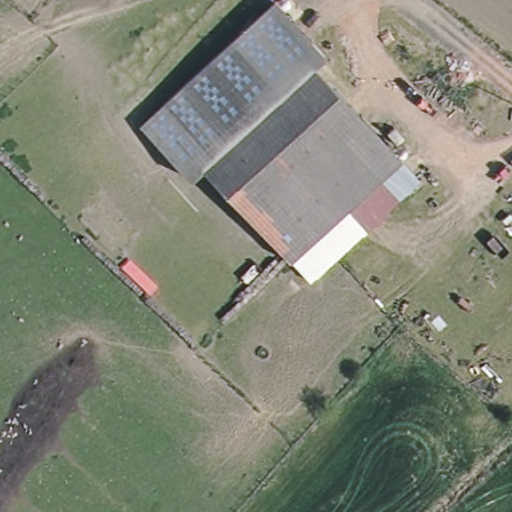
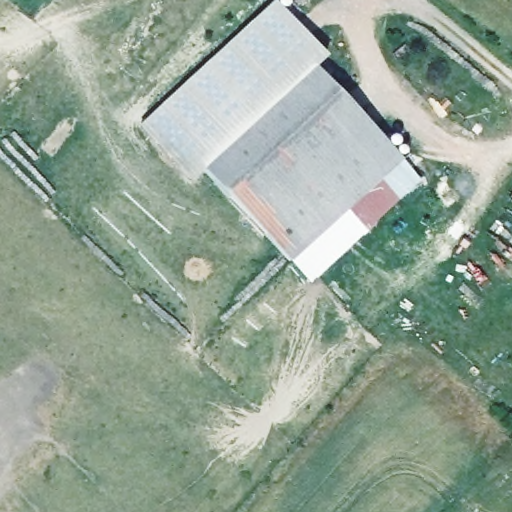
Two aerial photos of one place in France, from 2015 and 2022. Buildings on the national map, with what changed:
unchanged [(206,165),(196,176),(143,121),(274,0),(278,0),(326,53),(315,64),(318,67),(209,168),(206,165)]
unchanged [(293,258),(209,168),(318,67),(403,158),(421,178),(404,194),(313,279),(293,258)]

